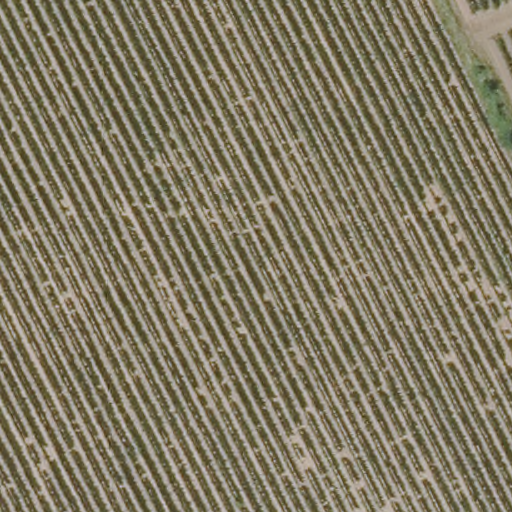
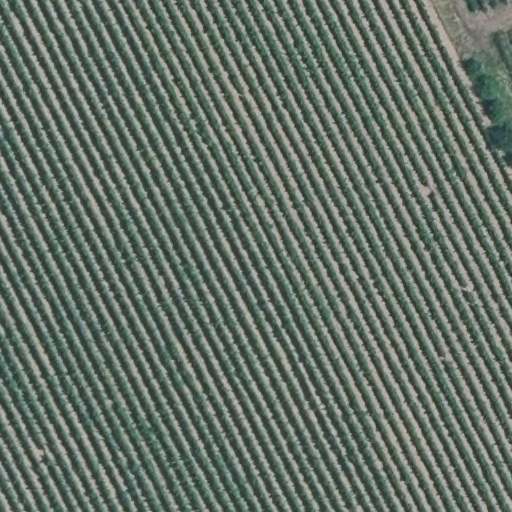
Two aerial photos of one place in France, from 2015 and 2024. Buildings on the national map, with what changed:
[]

